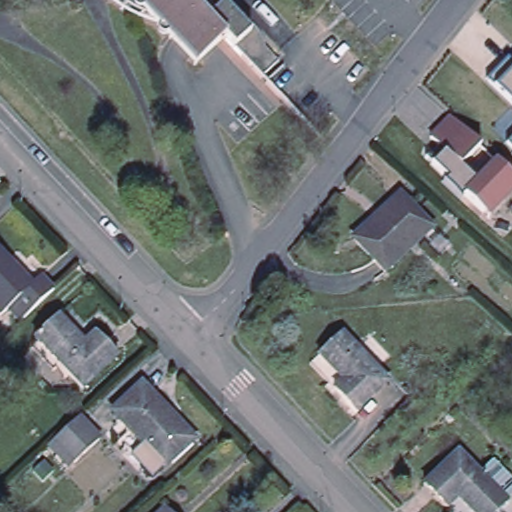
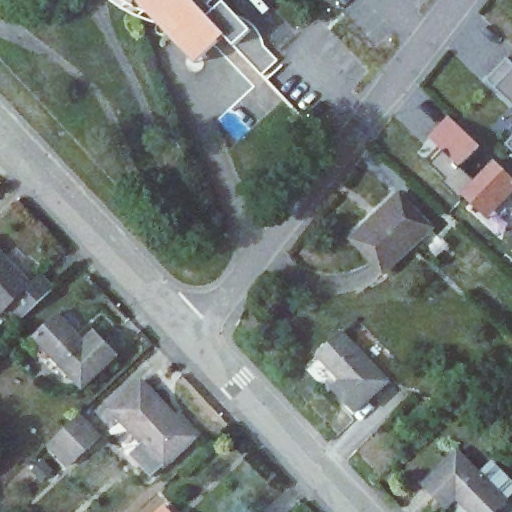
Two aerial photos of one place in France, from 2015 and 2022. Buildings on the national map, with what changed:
unchanged [(203,3),(208,10),(219,0),(228,12),(232,14),(244,20),(248,23),(251,27),(253,32),(260,47),(272,59),(256,75),(219,36),(190,63),(139,10),(121,2),(118,0),(207,0),(203,3)]
unchanged [(512,108),(494,92),(484,84),(509,59),(512,61),(512,108)]
unchanged [(482,211),(464,193),(459,197),(443,180),(446,177),(431,161),(424,155),(438,142),(430,135),(450,114),(480,143),(460,163),(476,179),(496,159),(512,175),(512,191),(487,216),(482,211)]
unchanged [(512,140),(512,150),(507,145),(512,140)]
unchanged [(431,226),(387,274),(354,243),(397,195),(431,226)]
unchanged [(56,285),(25,315),(13,302),(4,311),(0,306),(0,247),(33,282),(43,271),(56,285)]
unchanged [(31,345),(38,338),(35,335),(59,312),(85,339),(95,328),(118,352),(83,385),(60,361),(53,367),(31,345)]
unchanged [(346,329),(394,377),(361,408),(314,361),(346,329)]
unchanged [(142,383),(193,438),(165,465),(113,410),(142,383)]
unchanged [(80,413),(101,436),(76,459),(70,464),(49,441),(55,436),(80,413)]
unchanged [(494,512),(467,512),(454,498),(445,507),(422,484),(455,451),(505,500),(494,512)]
unchanged [(169,512),(159,512),(164,507),(169,512)]

